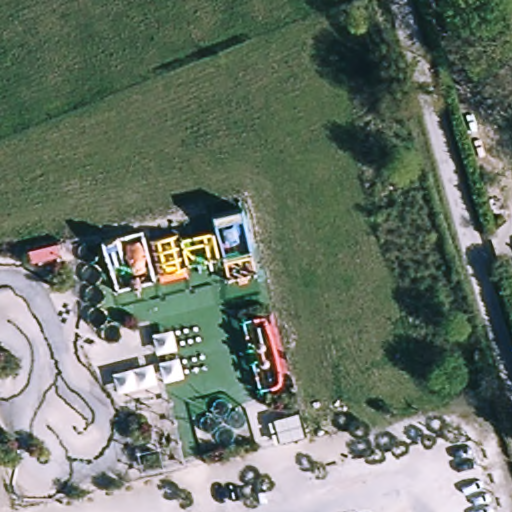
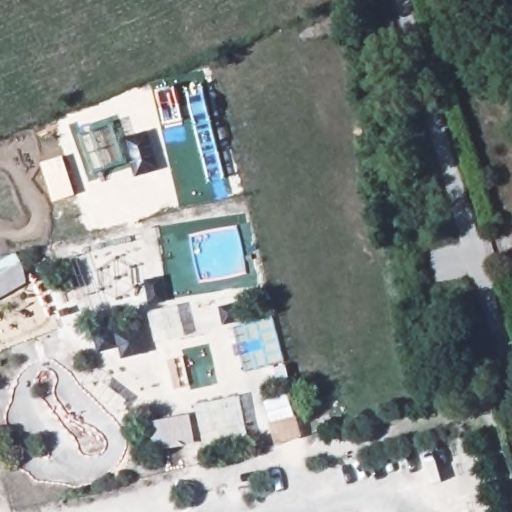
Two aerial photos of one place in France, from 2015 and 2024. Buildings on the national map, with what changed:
[]

